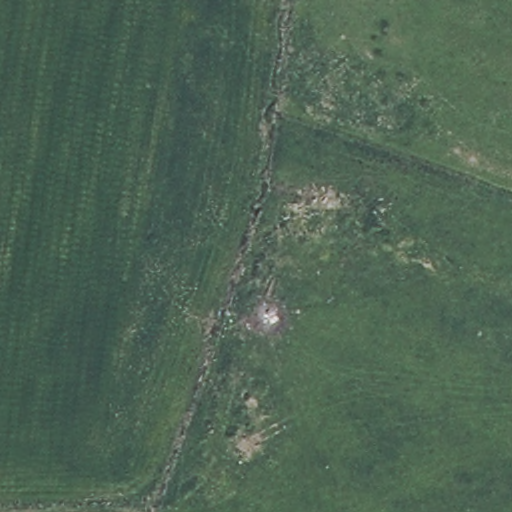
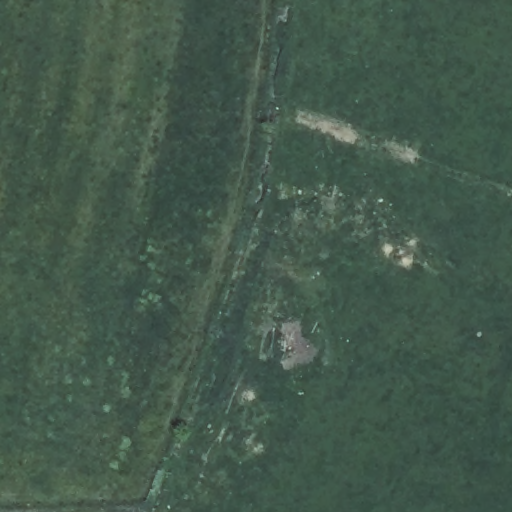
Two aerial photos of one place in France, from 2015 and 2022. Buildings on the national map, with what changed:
[]

